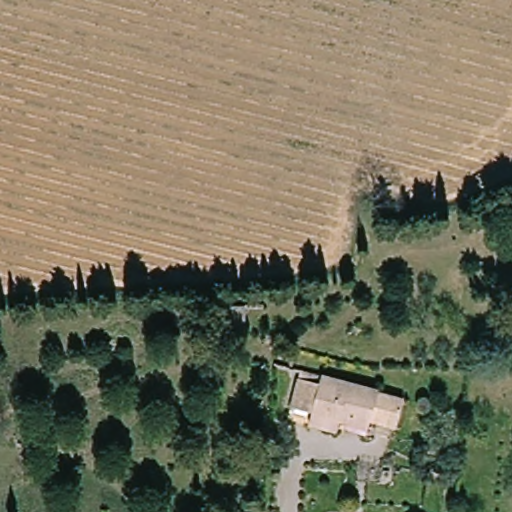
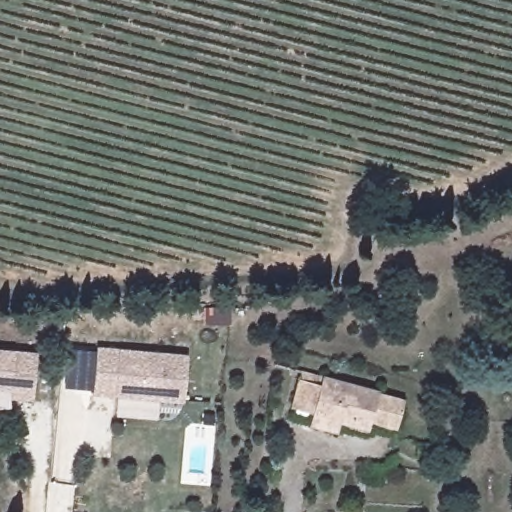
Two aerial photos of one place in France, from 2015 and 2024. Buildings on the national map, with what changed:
new [(187,403),(96,395),(100,349),(190,356),(187,403)]
new [(38,354),(34,400),(12,398),(13,390),(0,389),(0,351),(38,354)]
unchanged [(343,425),(340,433),(311,425),(314,410),(292,404),(299,379),(321,385),(323,377),(406,399),(397,430),(373,423),(373,426),(371,432),(343,425)]

